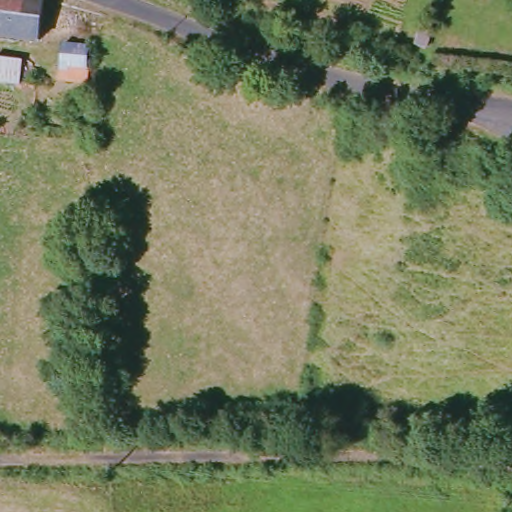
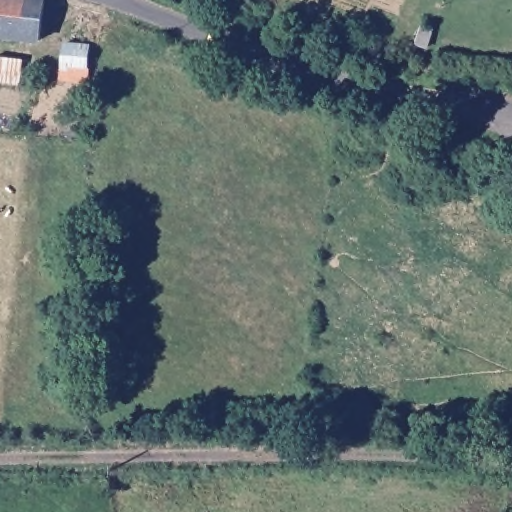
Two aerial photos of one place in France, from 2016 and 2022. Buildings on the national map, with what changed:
unchanged [(0,34),(0,0),(40,0),(40,39),(0,34)]
unchanged [(91,69),(60,68),(60,45),(92,46),(91,69)]
unchanged [(0,76),(0,53),(20,55),(17,77),(0,76)]

